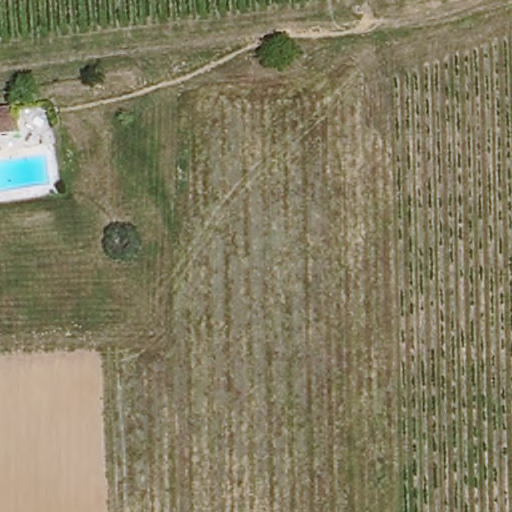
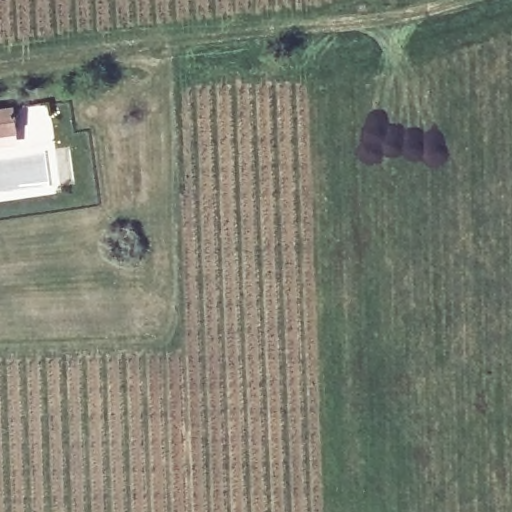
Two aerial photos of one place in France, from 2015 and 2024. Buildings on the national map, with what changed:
unchanged [(9,106),(13,134),(0,136),(0,107),(9,106)]

